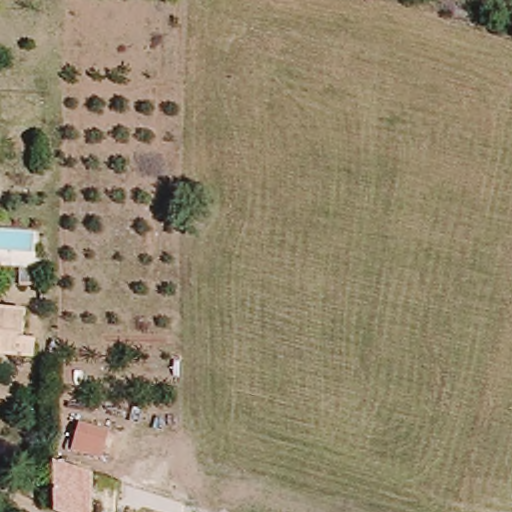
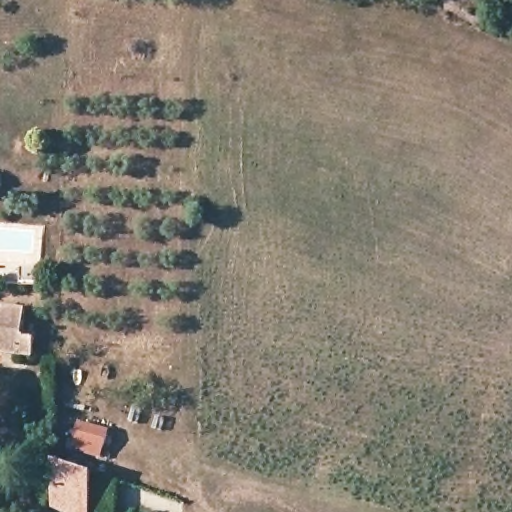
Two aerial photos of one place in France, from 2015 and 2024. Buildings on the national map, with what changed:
unchanged [(24,331),(39,331),(37,352),(4,352),(0,352),(0,303),(25,303),(24,331)]
unchanged [(55,442),(59,434),(65,416),(95,427),(88,445),(85,453),(55,442)]
unchanged [(93,473),(91,512),(64,512),(52,506),(52,458),(93,473)]

